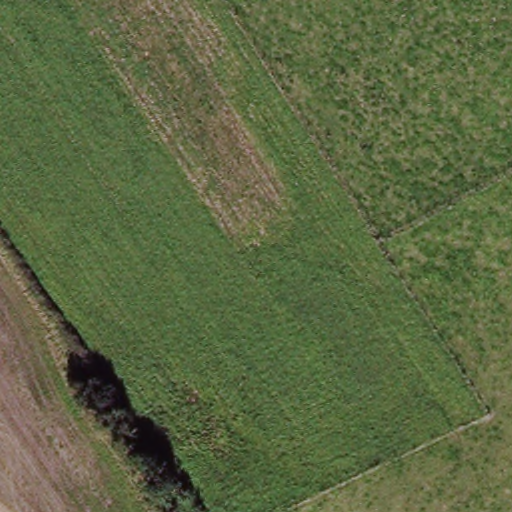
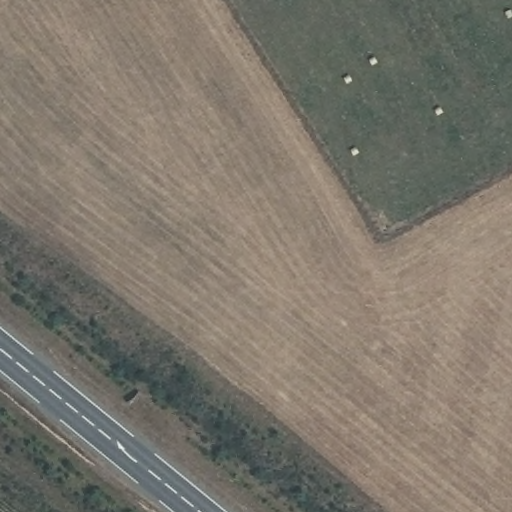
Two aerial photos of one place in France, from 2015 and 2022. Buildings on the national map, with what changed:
[]

